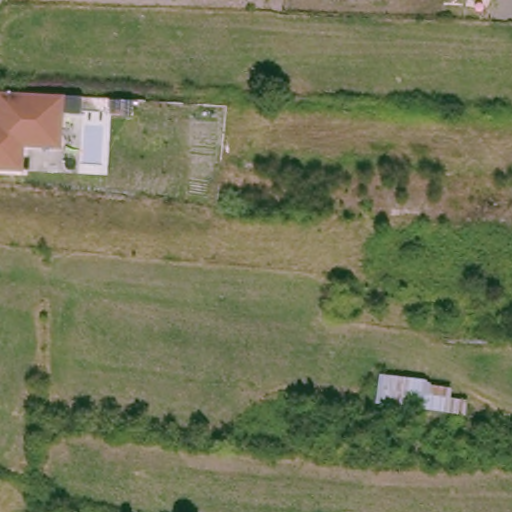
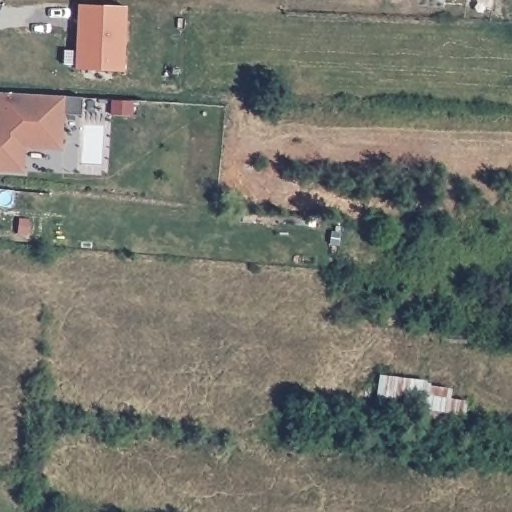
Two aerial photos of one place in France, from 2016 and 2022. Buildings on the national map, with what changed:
new [(129,9),(126,71),(76,69),(80,6),(129,9)]
unchanged [(1,93),(68,98),(86,98),(85,115),(66,115),(64,151),(27,149),(25,173),(0,172),(0,108),(1,93)]
unchanged [(429,380),(429,385),(456,389),(456,400),(467,401),(464,416),(438,414),(376,402),(381,373),(429,380)]

